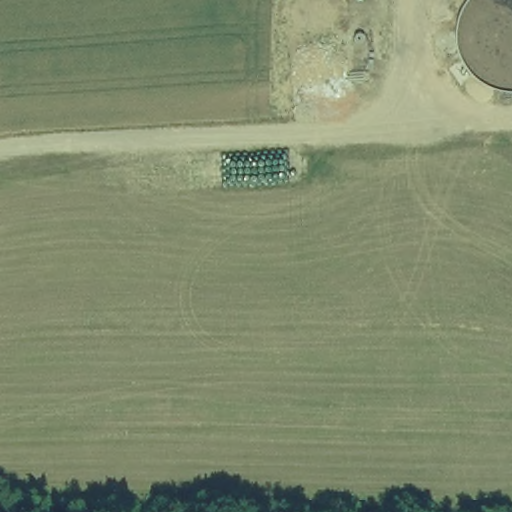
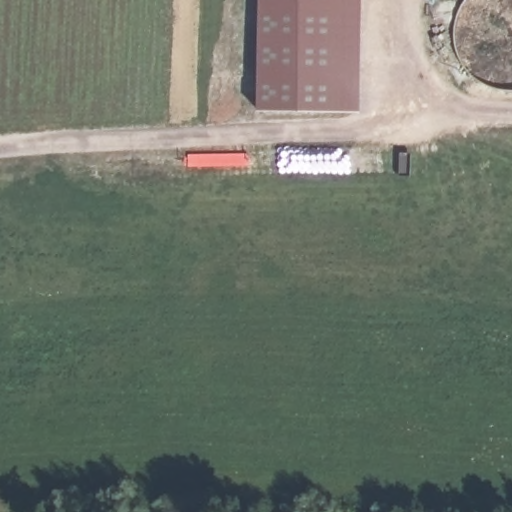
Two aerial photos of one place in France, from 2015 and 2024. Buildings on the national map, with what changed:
new [(269,111),(270,0),(352,0),(351,112),(269,111)]

